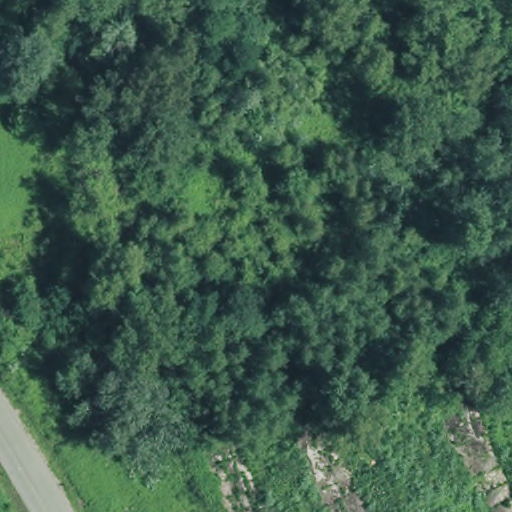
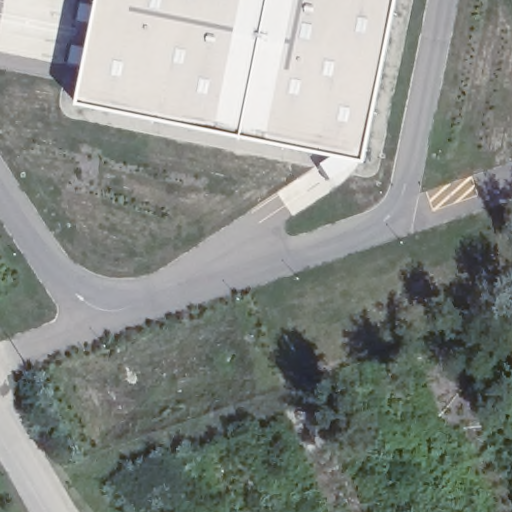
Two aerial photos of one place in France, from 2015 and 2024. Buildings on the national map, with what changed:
new [(355,156),(63,100),(83,0),(388,0),(355,156)]

